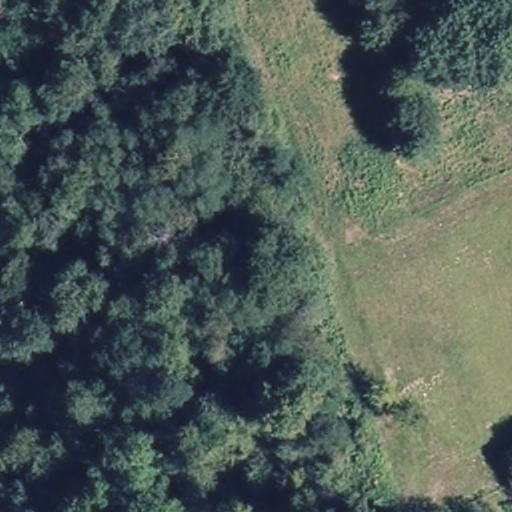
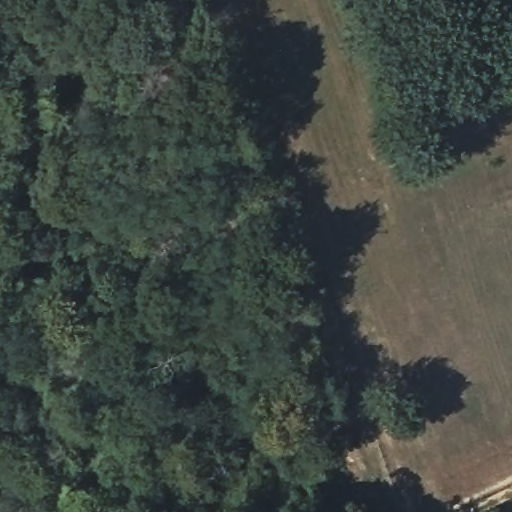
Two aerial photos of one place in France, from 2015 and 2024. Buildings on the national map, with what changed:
[]

